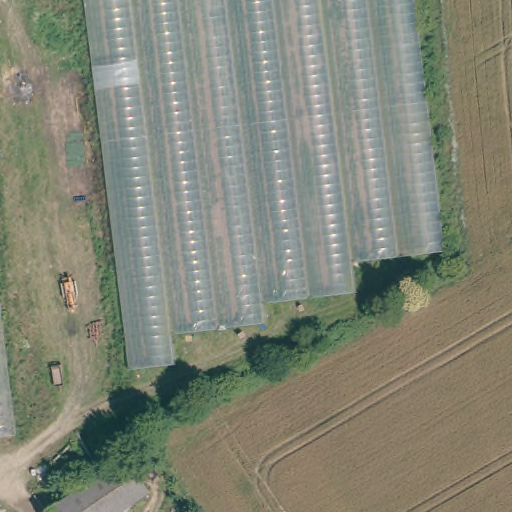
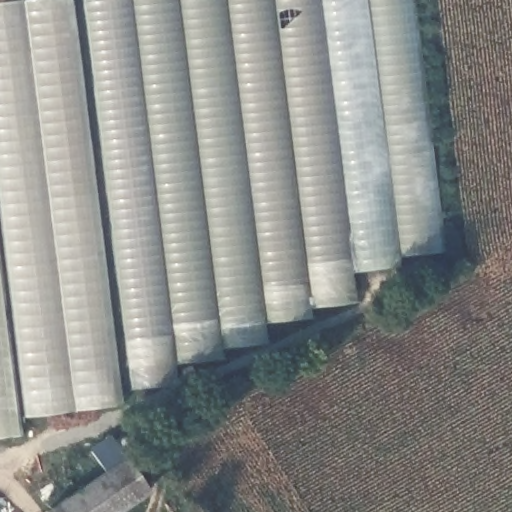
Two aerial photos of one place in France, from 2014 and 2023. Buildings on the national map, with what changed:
new [(27,415),(0,214),(0,2),(18,0),(72,0),(125,405),(27,415)]
unchanged [(447,252),(361,260),(366,287),(268,301),(269,320),(179,332),(182,361),(131,369),(85,0),(410,0),(447,252)]
unchanged [(17,435),(0,438),(0,303),(17,435)]
unchanged [(41,512),(41,510),(123,457),(145,491),(113,512),(41,512)]

